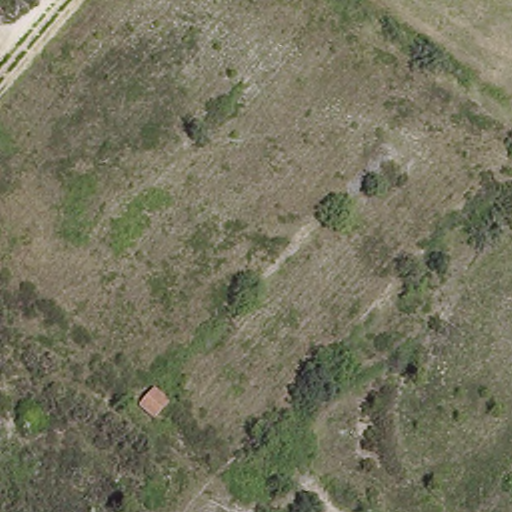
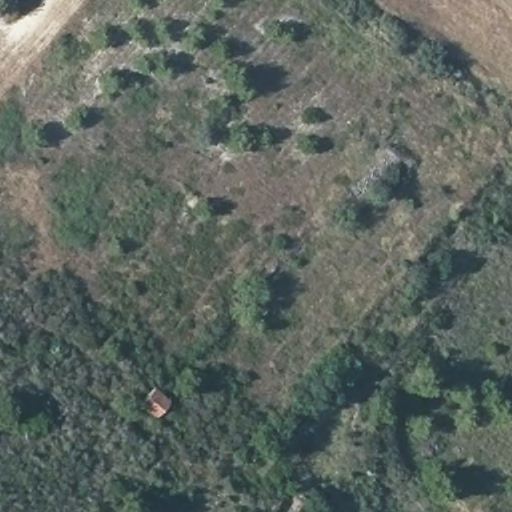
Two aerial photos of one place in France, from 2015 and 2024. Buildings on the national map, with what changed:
unchanged [(174,401),(152,423),(136,405),(156,387),(174,401)]

